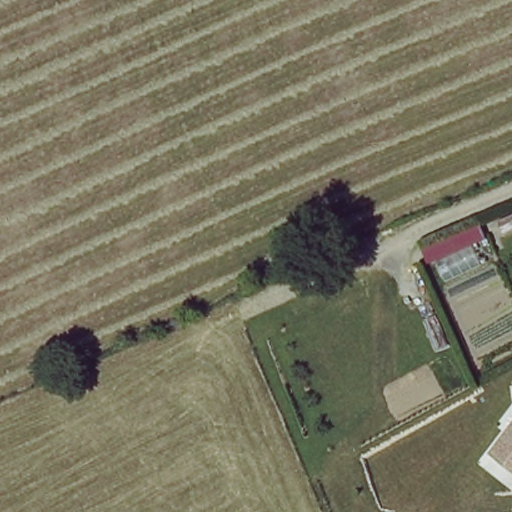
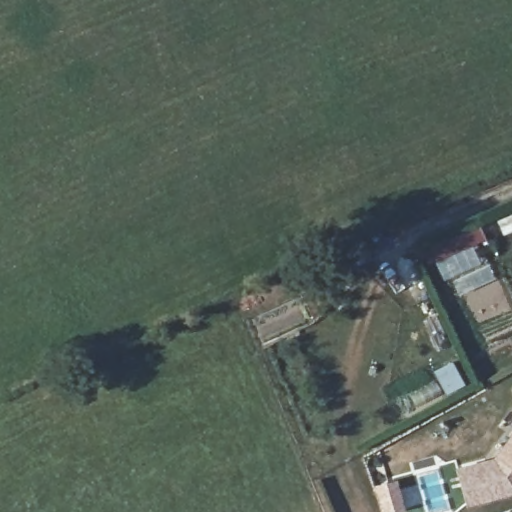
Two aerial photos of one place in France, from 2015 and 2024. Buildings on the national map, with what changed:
unchanged [(422,246),(480,223),(486,239),(431,263),(422,246)]
unchanged [(512,434),(512,468),(495,456),(512,434)]
new [(512,468),(512,491),(464,506),(455,469),(495,456),(512,468)]

